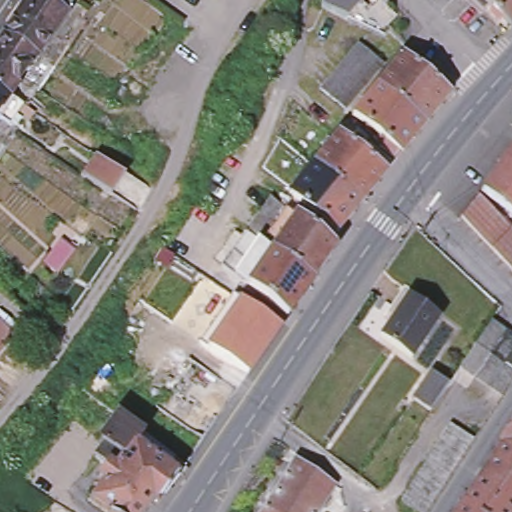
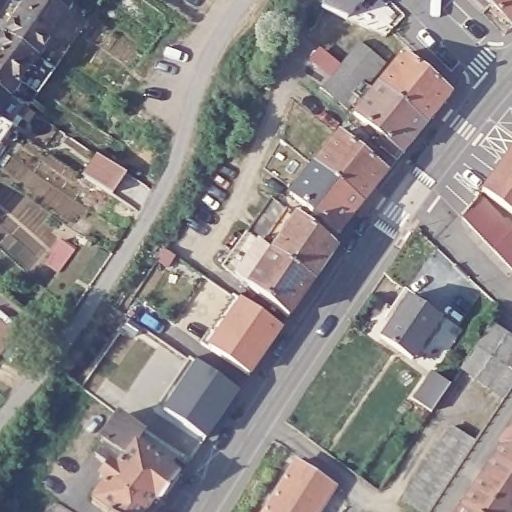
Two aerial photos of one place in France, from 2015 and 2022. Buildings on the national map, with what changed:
unchanged [(6,34),(12,25),(20,14),(27,4),(29,0),(66,0),(74,5),(67,15),(52,37),(38,57),(24,76),(10,97),(26,108),(29,110),(33,113),(26,122),(24,120),(16,131),(12,128),(0,120),(0,42),(6,34)]
unchanged [(75,0),(78,0),(77,1),(75,0)]
unchanged [(322,0),(359,0),(344,14),(320,2),(322,0)]
unchanged [(485,0),(488,0),(487,1),(485,0)]
unchanged [(488,0),(512,0),(512,19),(509,23),(487,1),(488,0)]
unchanged [(347,50),(357,39),(382,59),(372,70),(364,82),(354,94),(345,105),(319,85),(329,73),(338,62),(347,50)]
unchanged [(400,51),(409,58),(424,70),(399,100),(375,81),(400,51)]
unchanged [(424,120),(399,100),(424,70),(448,90),(424,120)]
unchanged [(375,81),(399,100),(375,130),(352,111),(375,81)]
unchanged [(400,150),(375,130),(399,100),(424,120),(400,150)]
unchanged [(360,149),(335,180),(312,161),(337,130),(360,149)]
unchanged [(512,142),(512,210),(480,187),(512,142)]
unchanged [(384,169),(359,200),(335,180),(360,149),(384,169)]
unchanged [(115,196),(107,190),(98,185),(84,176),(98,155),(112,165),(120,170),(128,175),(115,196)]
unchanged [(335,180),(311,209),(288,191),(312,161),(335,180)]
unchanged [(359,200),(335,229),(311,209),(335,180),(359,200)]
unchanged [(512,227),(512,272),(460,213),(477,191),(512,227)]
unchanged [(226,268),(245,237),(249,233),(262,215),(274,198),(284,206),(299,219),(331,246),(335,249),(337,250),(314,284),(290,318),(251,288),(226,268)]
unchanged [(58,269),(57,271),(44,262),(57,239),(72,248),(58,269)]
unchanged [(240,299),(282,327),(249,373),(208,344),(202,339),(234,293),(240,299)]
unchanged [(415,359),(383,337),(412,296),(443,319),(415,359)]
unchanged [(14,332),(19,337),(10,345),(12,346),(2,358),(0,360),(0,320),(14,332)]
unchanged [(463,368),(479,345),(493,323),(507,333),(512,337),(512,388),(505,397),(492,388),(478,378),(463,368)]
new [(207,440),(160,409),(159,408),(191,361),(205,370),(239,393),(207,440)]
unchanged [(417,401),(435,373),(452,385),(434,412),(417,401)]
unchanged [(148,499),(139,512),(101,512),(102,511),(86,499),(100,480),(92,474),(110,450),(94,438),(112,413),(135,430),(179,462),(171,472),(151,501),(148,499)]
unchanged [(413,489),(421,476),(429,464),(437,452),(445,440),(452,427),(476,442),(467,455),(460,467),(452,479),(444,491),(436,503),(430,512),(420,512),(405,502),(413,489)]
unchanged [(465,508),(484,478),(487,473),(504,448),(502,446),(512,431),(512,512),(462,512),(465,508)]
unchanged [(331,482),(312,512),(270,512),(262,506),(293,457),(331,482)]
unchanged [(262,506),(270,512),(258,512),(262,506)]

